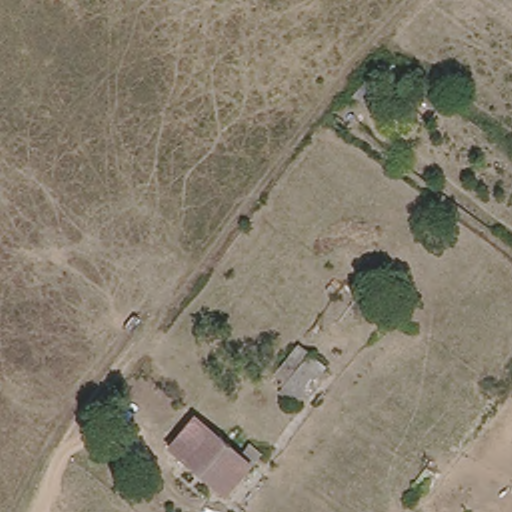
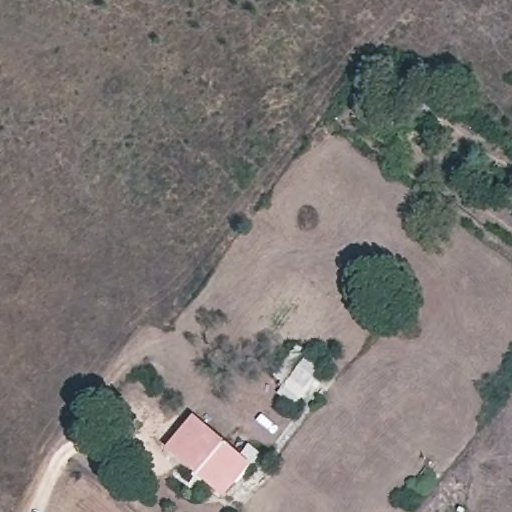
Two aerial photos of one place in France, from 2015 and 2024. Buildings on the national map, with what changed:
unchanged [(334,372),(312,400),(284,380),(306,350),(334,372)]
unchanged [(214,492),(168,453),(194,421),(241,457),(247,450),(261,459),(236,488),(226,502),(214,492)]

